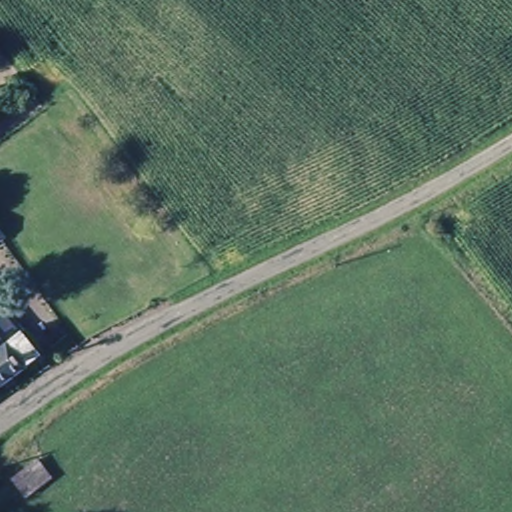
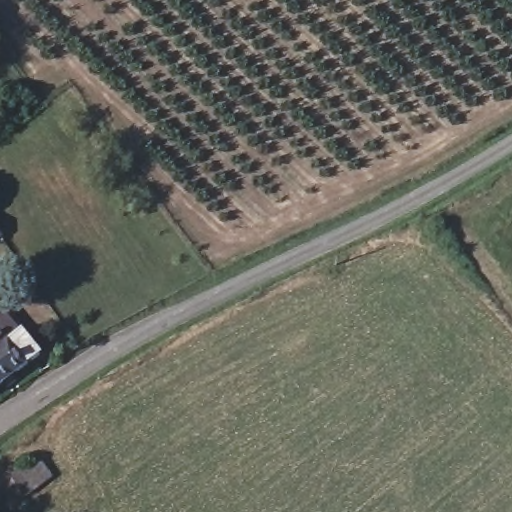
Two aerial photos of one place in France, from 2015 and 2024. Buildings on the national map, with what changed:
unchanged [(1,242),(0,242),(0,240),(1,242)]
unchanged [(12,318),(23,332),(44,358),(0,391),(0,328),(12,318)]
unchanged [(42,454),(58,473),(30,495),(15,475),(42,454)]

